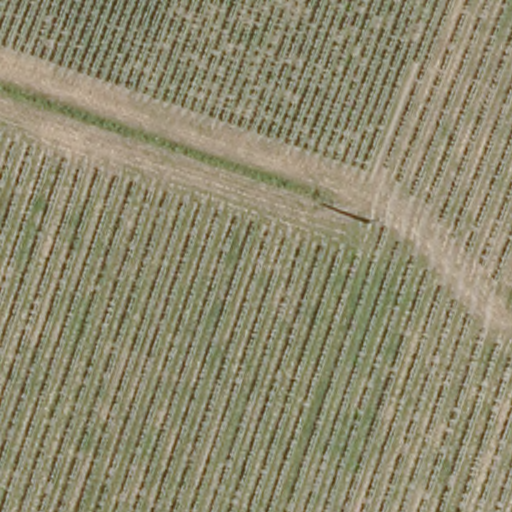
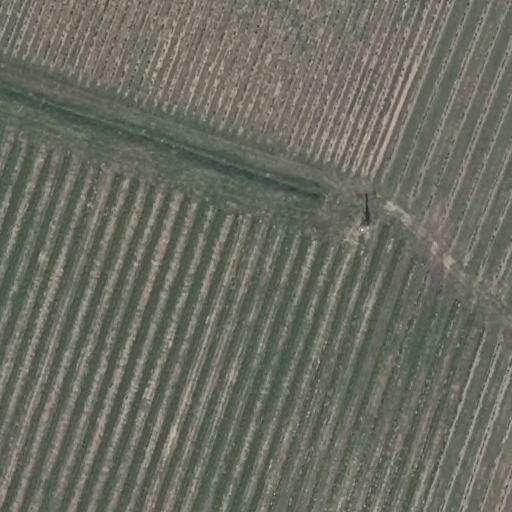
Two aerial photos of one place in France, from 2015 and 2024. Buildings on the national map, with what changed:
[]

